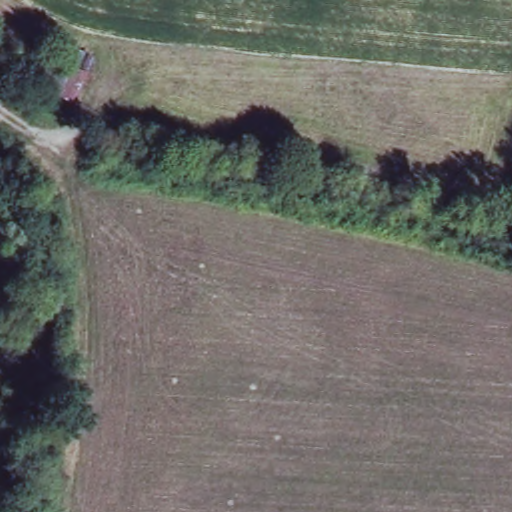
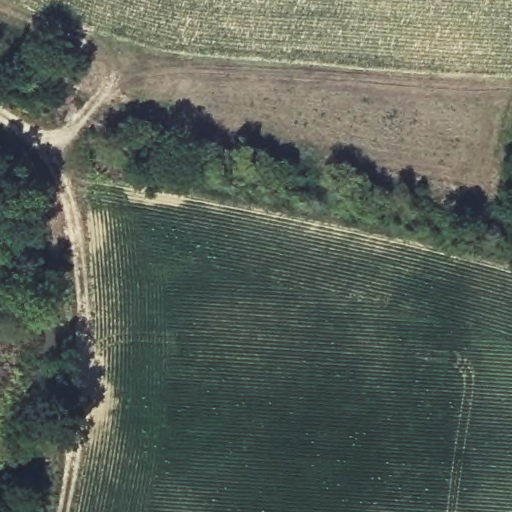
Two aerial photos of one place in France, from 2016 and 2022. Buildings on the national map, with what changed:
unchanged [(33,72),(59,34),(102,57),(78,100),(33,72)]

